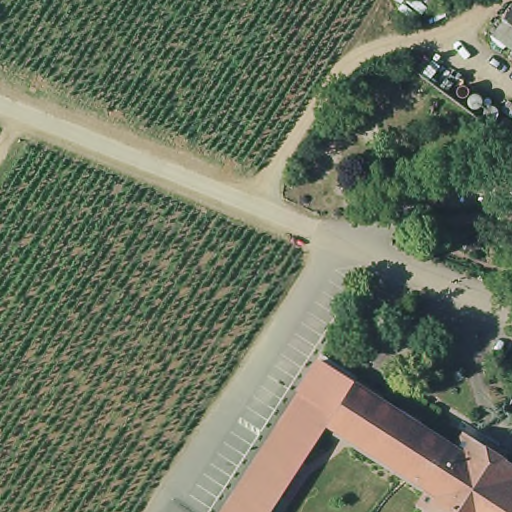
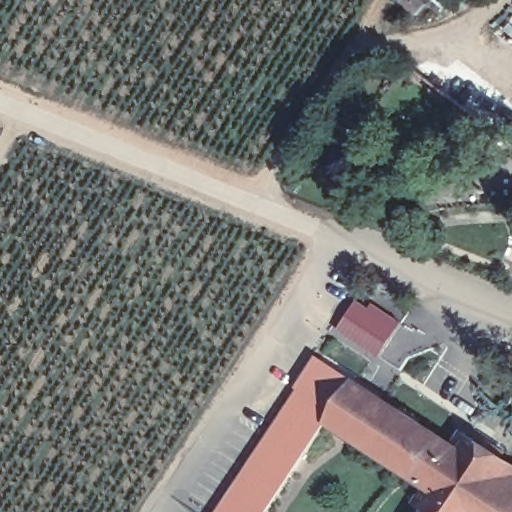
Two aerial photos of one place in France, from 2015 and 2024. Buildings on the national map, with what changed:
new [(342,332),(360,303),(372,312),(376,306),(405,326),(385,359),(342,332)]
unchanged [(337,412),(272,512),(233,512),(310,395),(303,391),(323,361),(359,382),(339,413),(337,412)]
unchanged [(359,382),(442,436),(416,475),(341,427),(346,418),(339,413),(359,382)]
unchanged [(465,451),(473,437),(512,462),(512,501),(505,512),(431,512),(432,510),(423,504),(435,487),(416,475),(442,436),(465,451)]
unchanged [(512,512),(505,512),(512,501),(512,512)]

